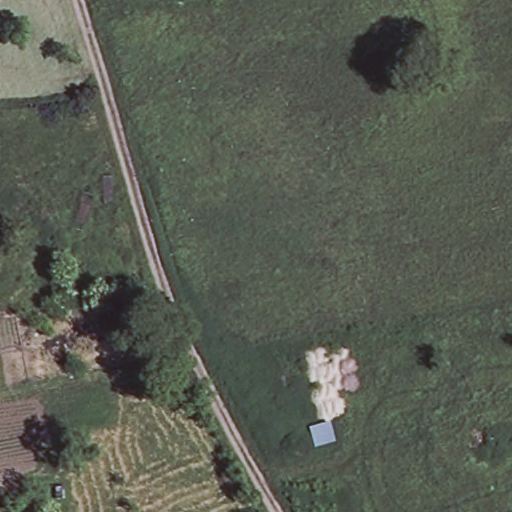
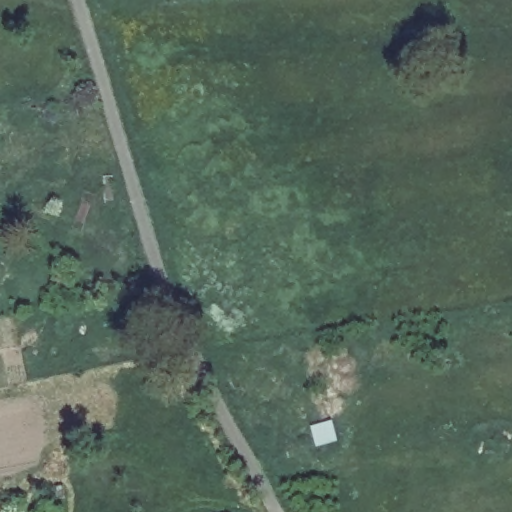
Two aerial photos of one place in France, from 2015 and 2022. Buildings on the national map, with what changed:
unchanged [(45,335),(46,345),(34,347),(32,337),(45,335)]

